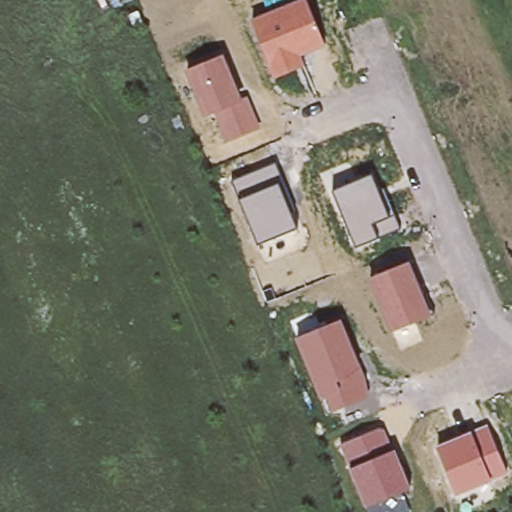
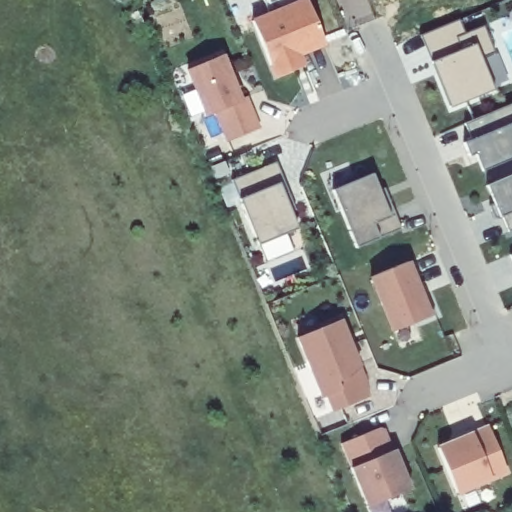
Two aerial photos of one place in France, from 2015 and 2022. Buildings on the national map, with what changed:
unchanged [(251,18),(295,0),(307,0),(325,47),(301,56),(305,67),(274,78),(251,18)]
new [(422,40),(421,37),(460,21),(466,35),(485,28),(496,55),(482,61),(495,92),(455,109),(451,110),(422,40)]
unchanged [(229,143),(217,114),(207,118),(188,72),(222,59),(228,75),(230,74),(236,89),(235,89),(240,104),(247,100),(260,130),(229,143)]
new [(470,159),(465,145),(473,142),(466,125),(512,107),(512,161),(490,170),(483,173),(476,156),(470,159)]
unchanged [(277,165),(294,205),(290,207),(300,231),(259,247),(232,183),(277,165)]
unchanged [(357,251),(333,194),(373,176),(384,201),(390,200),(402,231),(357,251)]
new [(495,185),(512,178),(512,233),(510,234),(503,218),(496,221),(491,207),(495,205),(488,188),(495,185)]
new [(512,258),(511,257),(512,257),(512,258)]
unchanged [(410,265),(423,297),(428,295),(436,316),(395,333),(372,280),(410,265)]
unchanged [(347,318),(359,347),(355,350),(360,365),(365,362),(371,376),(368,378),(375,393),(347,405),(340,389),(329,394),(305,336),(347,318)]
unchanged [(381,430),(386,432),(395,453),(397,452),(413,491),(369,510),(342,446),(381,430)]
unchanged [(453,445),(460,448),(476,441),(473,436),(490,430),(510,474),(459,495),(440,450),(453,445)]

